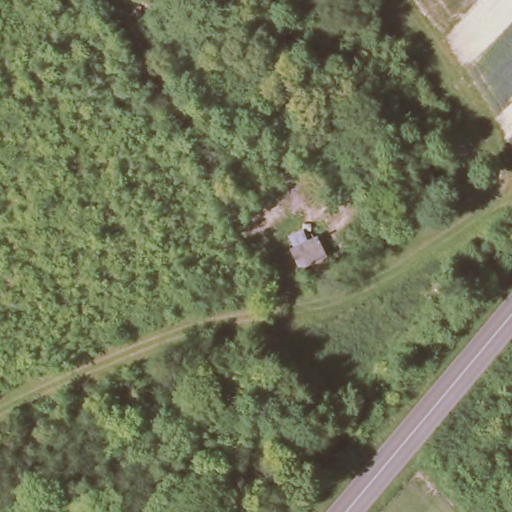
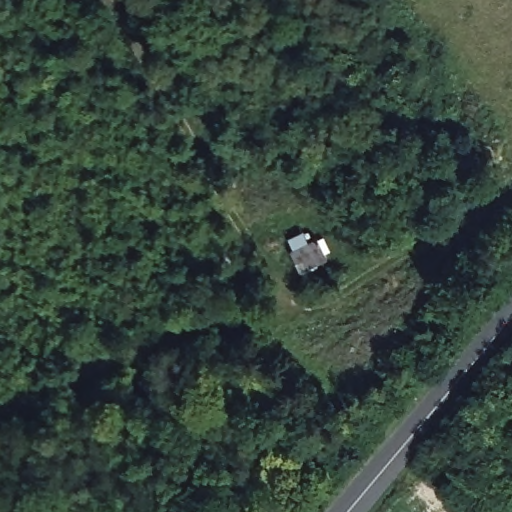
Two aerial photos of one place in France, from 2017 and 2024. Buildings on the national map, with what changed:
unchanged [(284,249),(312,236),(324,258),(294,268),(284,249)]

